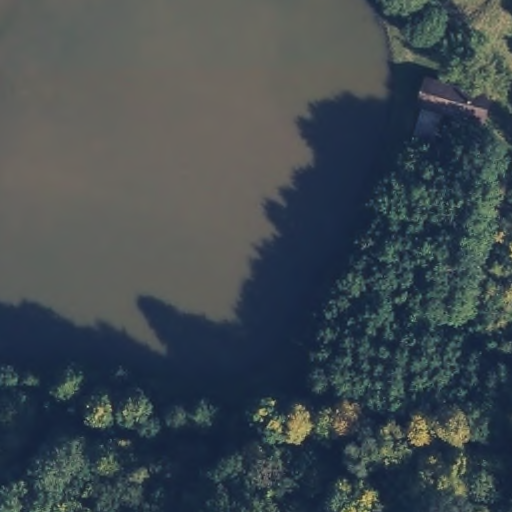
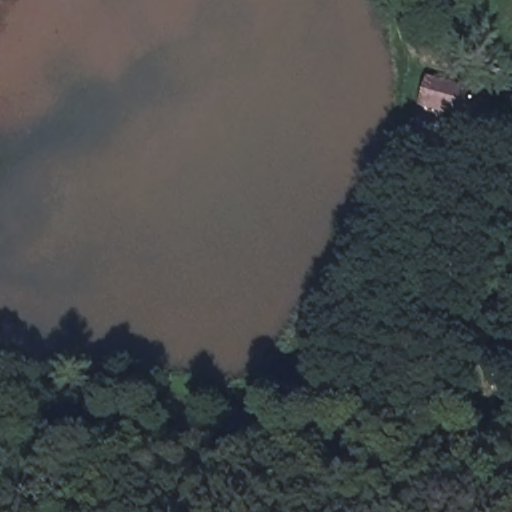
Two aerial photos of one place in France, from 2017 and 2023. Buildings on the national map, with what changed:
unchanged [(442,112),(420,103),(429,78),(454,91),(442,112)]

